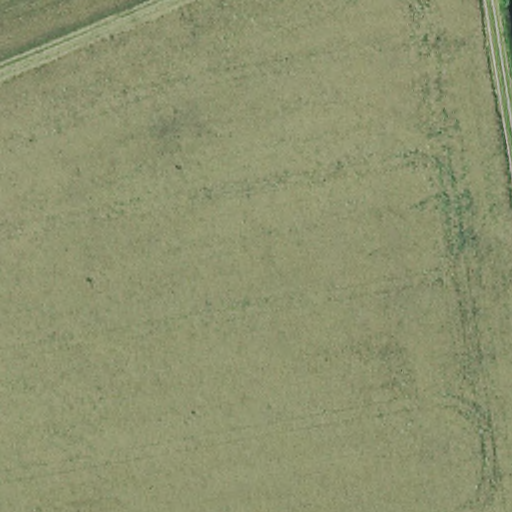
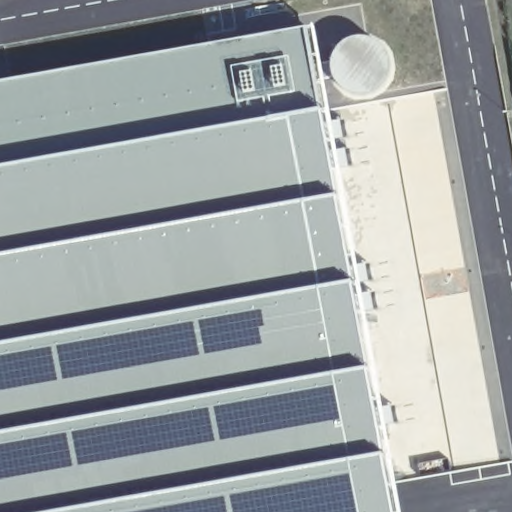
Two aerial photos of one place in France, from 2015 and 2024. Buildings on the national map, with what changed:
new [(400,512),(0,512),(0,85),(315,26),(400,512)]
new [(333,57),(337,49),(344,42),(352,38),(362,37),(371,38),(380,42),(386,49),(390,57),(392,67),(390,76),(386,84),(380,91),(371,95),(362,97),(352,95),(344,91),(337,84),(333,76),(332,67),(333,57)]

